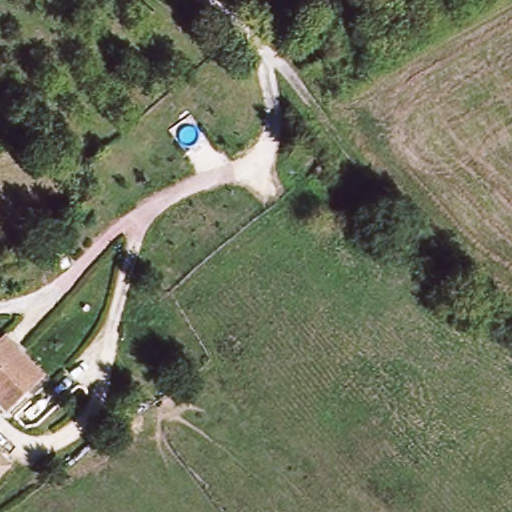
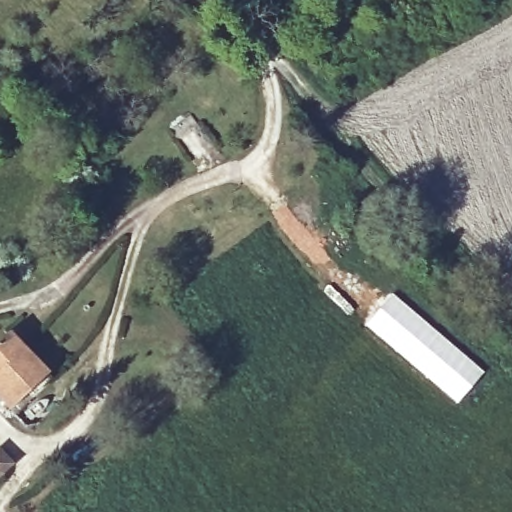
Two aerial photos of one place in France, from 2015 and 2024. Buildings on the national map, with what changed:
new [(364,325),(391,293),(482,372),(456,403),(364,325)]
unchanged [(8,340),(22,356),(49,387),(32,402),(26,397),(4,413),(0,409),(0,347),(8,340)]
new [(14,464),(0,477),(0,449),(14,464)]

